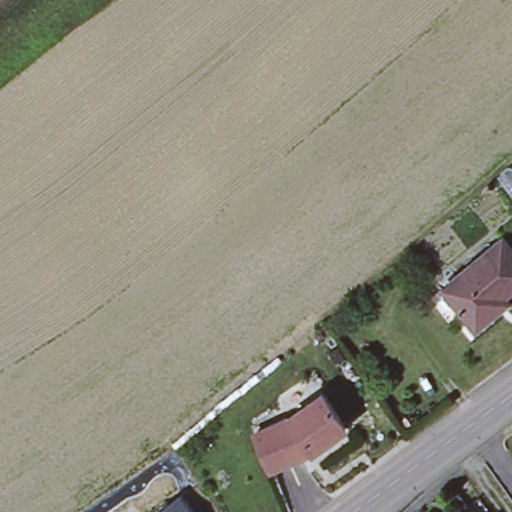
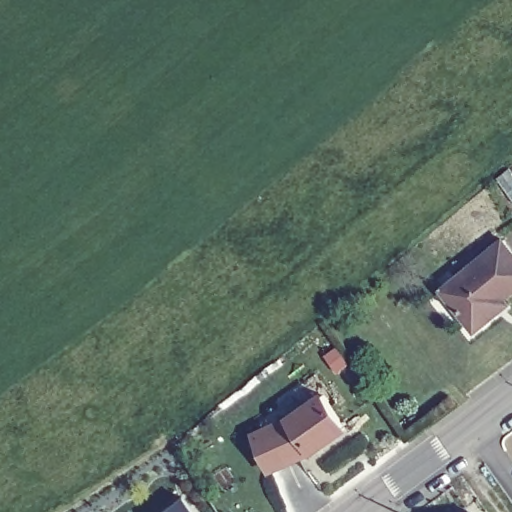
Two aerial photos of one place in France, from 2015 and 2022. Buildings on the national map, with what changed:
unchanged [(493,306),(469,325),(437,286),(497,237),(512,254),(512,280),(488,300),(493,306)]
unchanged [(313,481),(304,466),(275,478),(255,438),(319,393),(349,438),(318,461),(326,474),(313,481)]
unchanged [(183,498),(193,512),(162,512),(183,498)]
unchanged [(468,511),(481,503),(487,512),(466,512),(468,511)]

